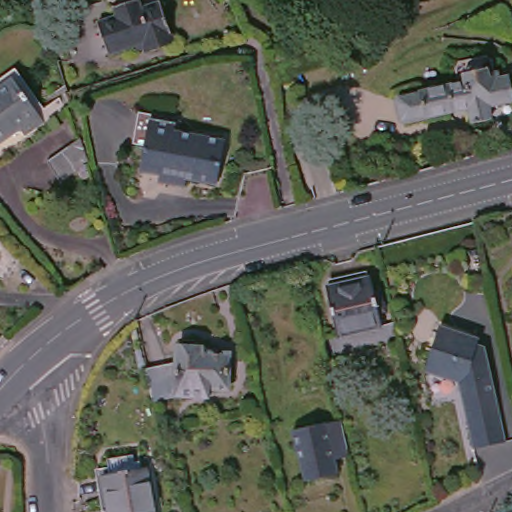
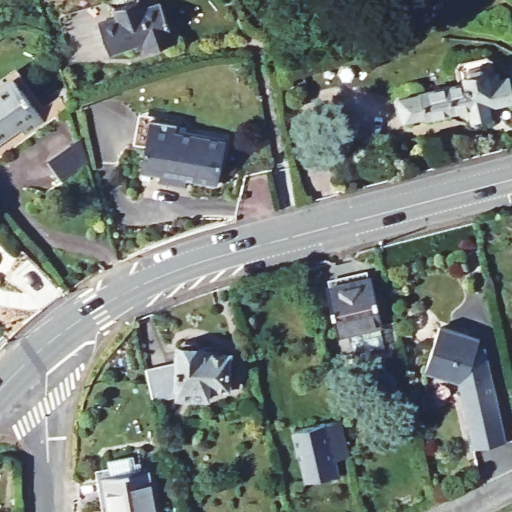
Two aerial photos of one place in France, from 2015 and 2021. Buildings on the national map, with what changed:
unchanged [(124,14),(121,5),(139,0),(146,0),(149,7),(169,0),(181,40),(156,48),(152,38),(118,51),(107,20),(124,14)]
unchanged [(396,120),(392,104),(394,99),(462,83),(460,75),(464,74),(464,68),(479,65),(483,70),(486,70),(489,82),(504,79),(511,102),(484,108),(487,122),(469,126),(466,109),(401,124),(396,120)]
unchanged [(46,114),(27,127),(21,120),(0,135),(0,83),(16,71),(46,114)]
unchanged [(211,189),(184,178),(181,185),(156,176),(159,170),(152,167),(146,147),(158,115),(181,124),(179,129),(228,147),(211,189)]
unchanged [(56,188),(40,168),(79,139),(87,165),(56,188)]
unchanged [(374,294),(382,294),(389,314),(379,317),(383,329),(339,339),(328,289),(369,281),(374,294)]
unchanged [(476,443),(460,378),(434,370),(433,358),(441,327),(483,338),(499,406),(503,405),(509,436),(476,443)]
unchanged [(146,365),(167,361),(174,359),(176,344),(181,344),(179,337),(186,332),(196,333),(199,336),(199,344),(204,344),(204,350),(229,351),(229,384),(207,383),(207,393),(172,392),(153,398),(146,365)]
unchanged [(343,462),(326,465),(328,481),(297,487),(292,459),(289,459),(286,434),(334,425),(343,462)]
unchanged [(103,468),(146,459),(154,512),(111,512),(103,468)]

